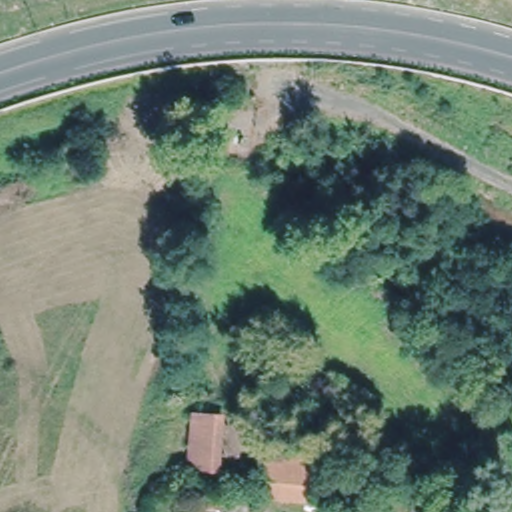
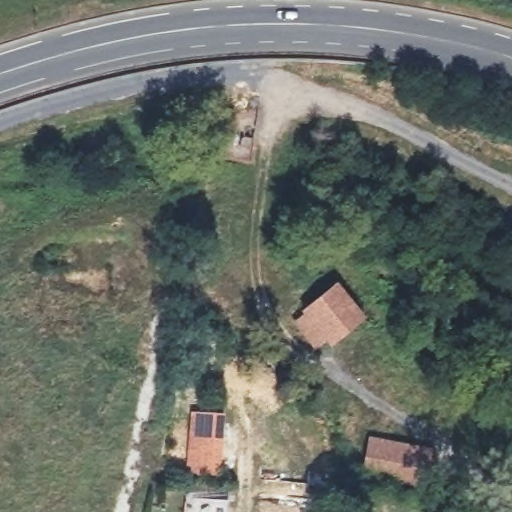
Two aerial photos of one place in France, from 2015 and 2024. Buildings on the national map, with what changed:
new [(366,316),(330,345),(326,339),(314,348),(292,321),(301,310),(338,280),(366,316)]
unchanged [(191,470),(196,415),(224,417),(218,474),(191,470)]
unchanged [(262,495),(265,434),(316,438),(307,499),(262,495)]
new [(435,449),(429,488),(362,476),(369,435),(435,449)]
unchanged [(229,512),(198,512),(199,500),(230,502),(229,512)]

